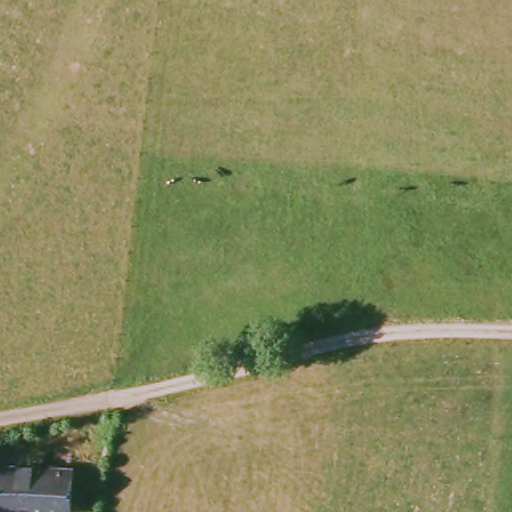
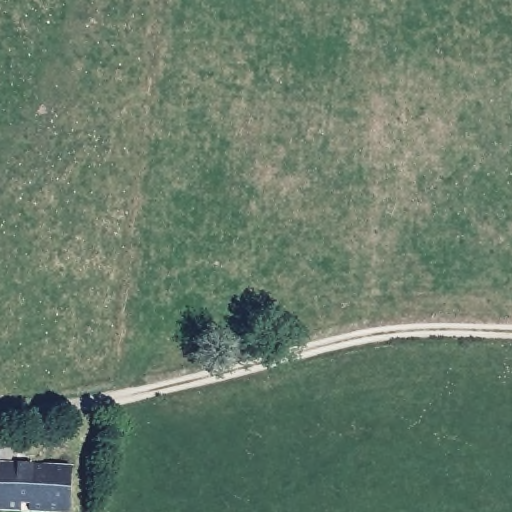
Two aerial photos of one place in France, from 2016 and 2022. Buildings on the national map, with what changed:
unchanged [(14,439),(16,468),(66,467),(68,512),(0,512),(0,441),(14,439)]

